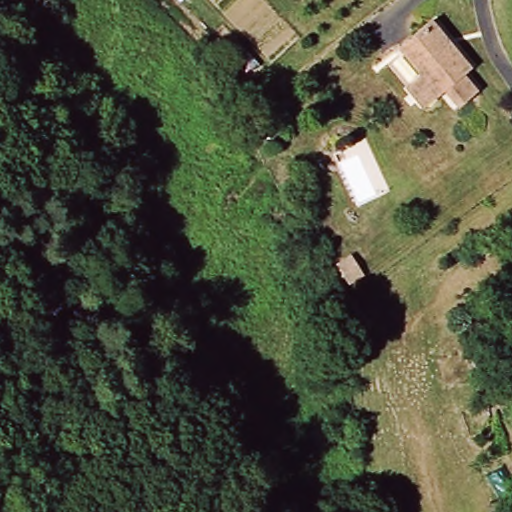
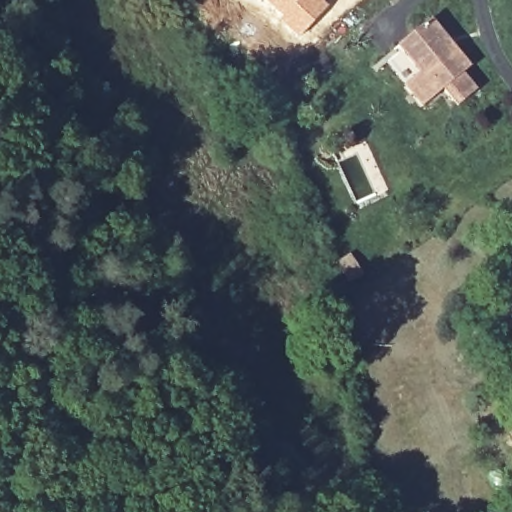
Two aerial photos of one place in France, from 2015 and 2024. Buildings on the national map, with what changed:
new [(299,38),(260,0),(324,0),(329,5),(299,38)]
unchanged [(381,67),(439,26),(474,75),(466,81),(479,99),(464,111),(450,93),(402,128),(387,106),(366,78),(381,67)]
unchanged [(352,156),(325,175),(319,164),(344,146),(352,156)]

